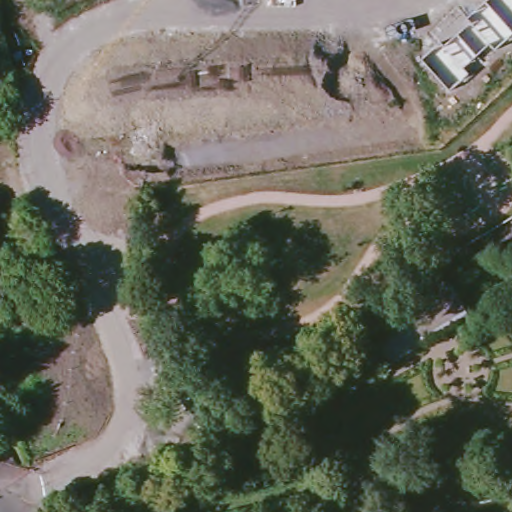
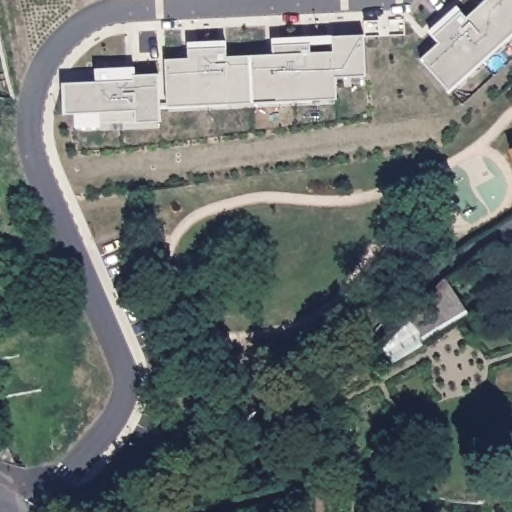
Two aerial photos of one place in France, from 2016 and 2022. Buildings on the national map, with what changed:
new [(453,101),(423,66),(438,49),(428,40),(461,12),(470,21),(491,0),(512,0),(512,46),(453,101)]
new [(365,76),(337,77),(337,98),(168,106),(166,59),(188,59),(187,42),(227,40),(227,57),(272,55),(272,46),(271,39),(334,36),(365,35),(365,76)]
new [(95,82),(95,69),(135,67),(136,75),(158,74),(161,122),(137,124),(136,119),(101,120),(102,127),(75,129),(75,115),(65,115),(63,84),(95,82)]
unchanged [(509,151),(512,150),(512,158),(509,151)]
unchanged [(445,278),(465,310),(422,337),(408,317),(445,278)]
unchanged [(380,346),(388,357),(379,364),(371,354),(380,346)]

